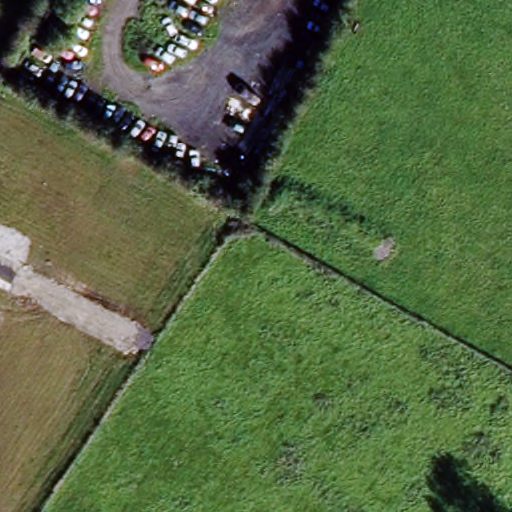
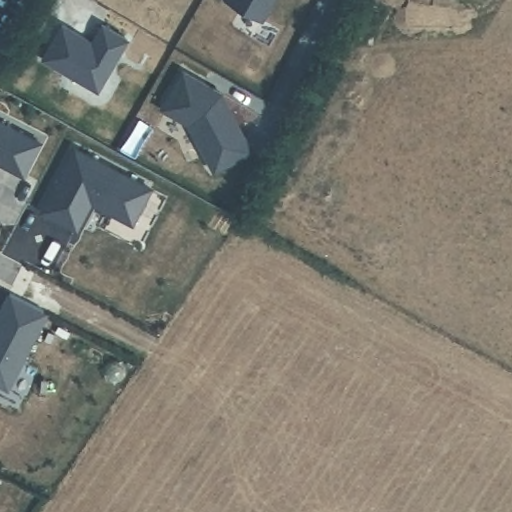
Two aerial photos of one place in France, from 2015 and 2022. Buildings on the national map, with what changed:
new [(227,0),(274,0),(262,20),(227,0)]
new [(42,58),(62,24),(92,42),(102,24),(127,39),(97,90),(42,58)]
new [(214,171),(189,124),(166,111),(164,102),(182,70),(221,92),(252,151),(214,171)]
new [(44,146),(28,175),(0,160),(0,122),(44,146)]
new [(79,231),(45,213),(79,151),(154,192),(135,226),(100,207),(94,204),(79,231)]
new [(12,294),(46,312),(24,355),(26,357),(11,386),(0,380),(0,317),(12,294)]

